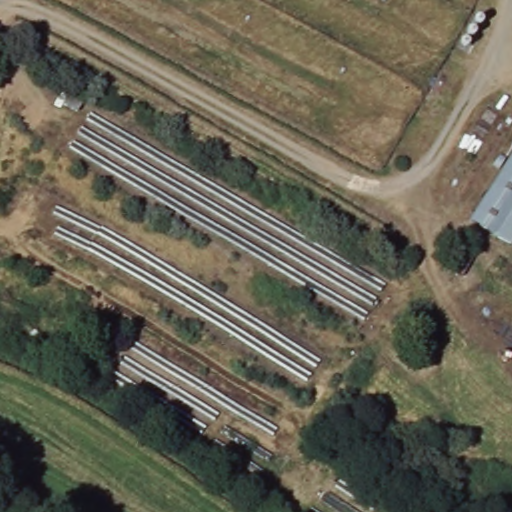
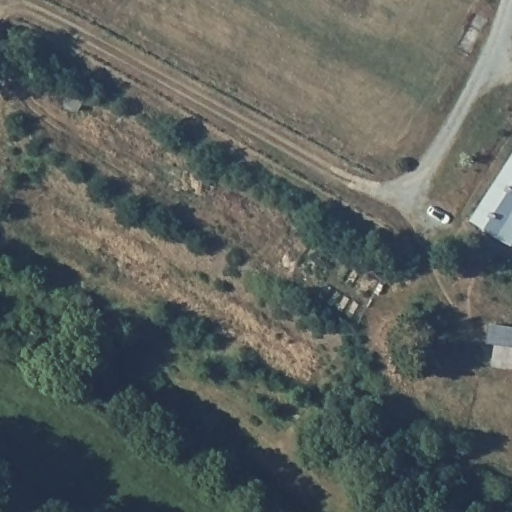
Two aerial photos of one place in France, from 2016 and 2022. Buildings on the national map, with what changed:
unchanged [(512,247),(469,225),(512,160),(512,247)]

